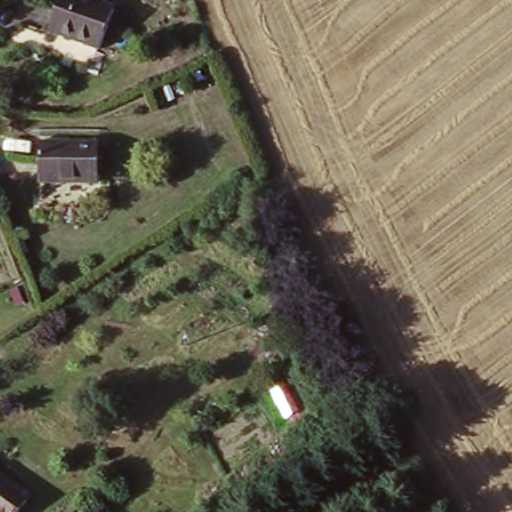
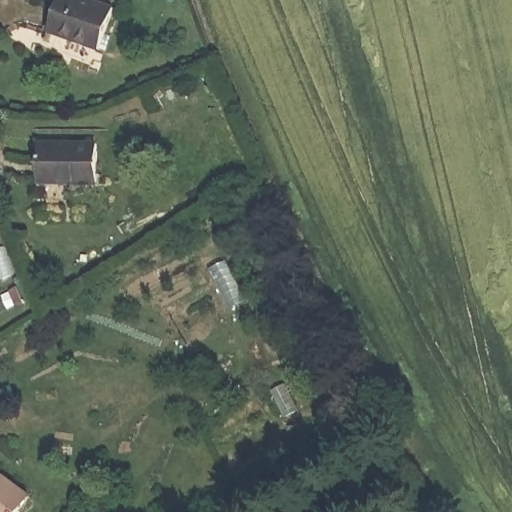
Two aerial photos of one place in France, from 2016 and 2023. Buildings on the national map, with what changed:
unchanged [(104,11),(93,50),(47,34),(58,0),(68,0),(104,11)]
unchanged [(99,154),(99,188),(40,188),(42,153),(99,154)]
unchanged [(1,512),(0,512),(0,466),(36,494),(23,512),(1,512)]

